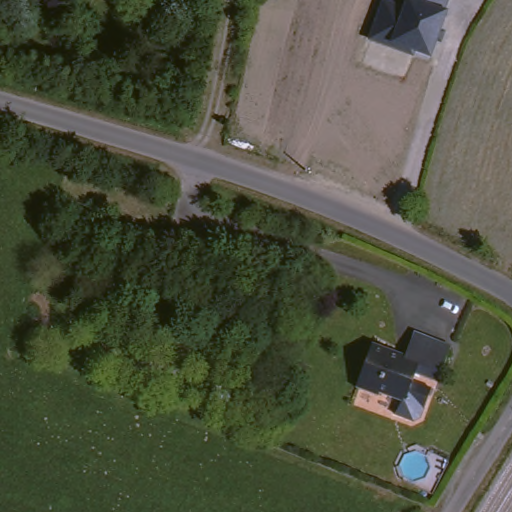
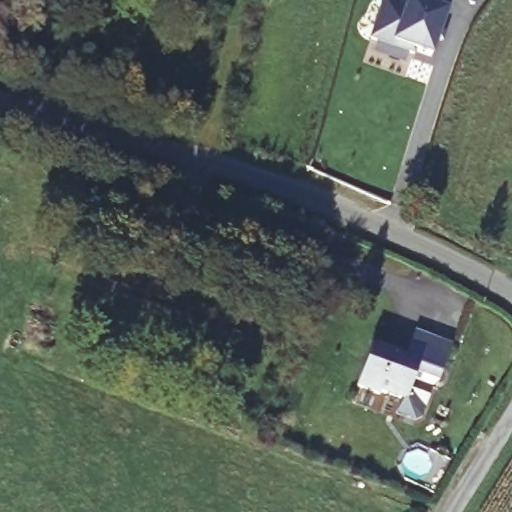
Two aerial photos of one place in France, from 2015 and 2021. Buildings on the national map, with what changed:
unchanged [(391,0),(404,5),(405,0),(449,0),(446,9),(449,10),(431,57),(414,51),(412,56),(368,40),(382,0),(391,0)]
unchanged [(413,378),(403,403),(353,390),(370,347),(401,358),(412,335),(447,346),(436,375),(433,384),(413,378)]

